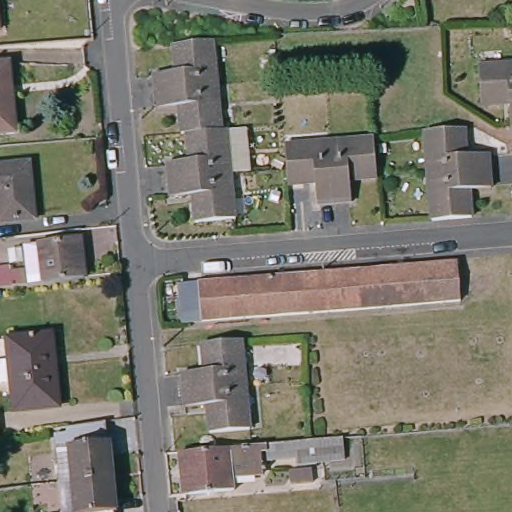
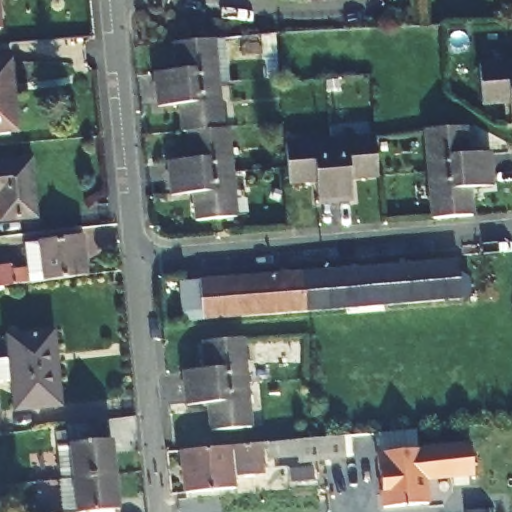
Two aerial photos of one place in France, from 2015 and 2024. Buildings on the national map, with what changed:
unchanged [(0,30),(0,7),(2,30),(0,30)]
unchanged [(213,45),(217,45),(222,91),(157,97),(156,80),(178,77),(175,49),(213,45)]
unchanged [(509,121),(507,99),(480,101),(477,62),(512,59),(512,121),(509,121)]
unchanged [(0,137),(0,66),(10,66),(16,136),(0,137)]
unchanged [(192,166),(188,139),(183,139),(182,124),(181,112),(159,113),(157,97),(222,91),(222,97),(224,121),(225,135),(226,142),(227,146),(231,145),(234,179),(170,186),(168,169),(192,166)]
unchanged [(425,177),(425,175),(422,132),(462,129),(464,156),(487,155),(487,171),(425,177)]
unchanged [(325,141),(371,137),(375,177),(348,179),(350,202),(332,204),(325,141)]
unchanged [(332,204),(315,205),(313,182),(286,185),(282,145),(325,141),(332,204)]
unchanged [(40,217),(2,222),(0,204),(0,164),(33,161),(40,217)]
unchanged [(489,188),(467,190),(469,217),(428,220),(425,177),(487,171),(489,188)]
unchanged [(238,222),(198,227),(194,200),(172,202),(170,186),(234,179),(238,222)]
unchanged [(14,273),(32,271),(28,247),(42,245),(84,240),(88,278),(0,289),(0,268),(13,266),(14,273)]
unchanged [(463,298),(205,319),(202,283),(460,262),(462,275),(463,298)]
unchanged [(20,383),(0,385),(0,361),(17,360),(15,337),(60,333),(66,407),(22,411),(20,383)]
unchanged [(185,388),(185,372),(205,371),(203,350),(203,343),(243,340),(243,342),(243,347),(247,383),(185,388)]
unchanged [(247,383),(250,427),(210,431),(208,406),(187,407),(185,388),(247,383)]
unchanged [(65,481),(60,427),(100,422),(102,442),(105,442),(108,475),(65,481)]
new [(475,476),(427,480),(429,506),(382,508),(377,452),(471,443),(475,476)]
unchanged [(332,465),(295,469),(295,463),(261,466),(262,474),(230,477),(232,495),(181,498),(177,456),(234,452),(310,446),(330,444),(332,465)]
unchanged [(108,475),(112,510),(108,511),(109,512),(69,512),(65,481),(108,475)]

